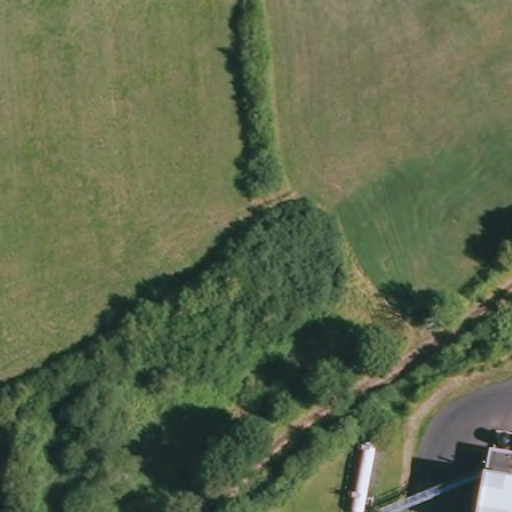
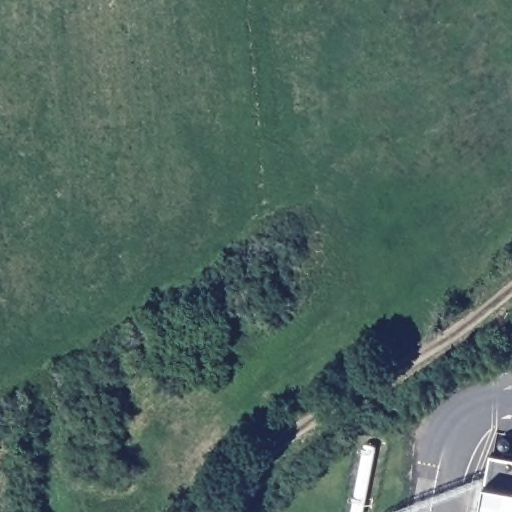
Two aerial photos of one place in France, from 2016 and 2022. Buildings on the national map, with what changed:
unchanged [(379,440),(365,512),(347,512),(364,437),(379,440)]
unchanged [(512,479),(512,512),(481,512),(486,492),(496,451),(512,479)]
unchanged [(512,455),(512,479),(496,451),(512,455)]

